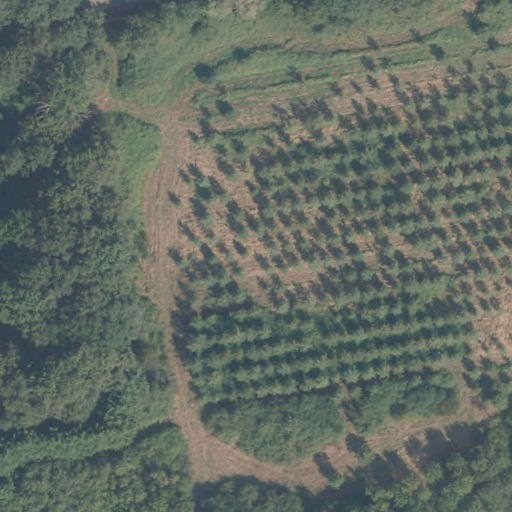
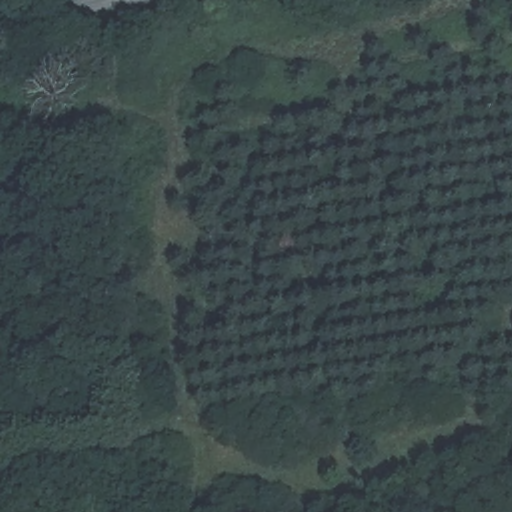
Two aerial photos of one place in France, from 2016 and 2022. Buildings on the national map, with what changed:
[]

